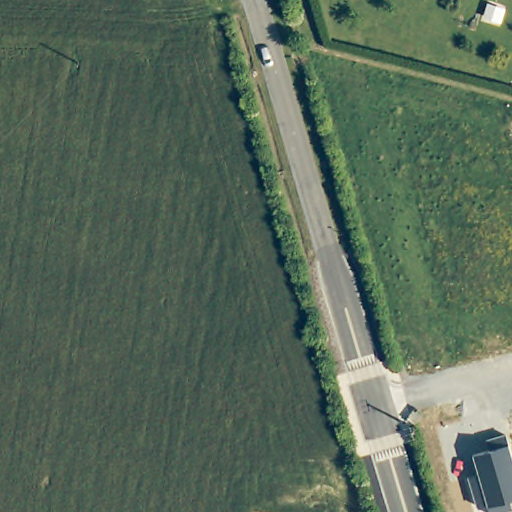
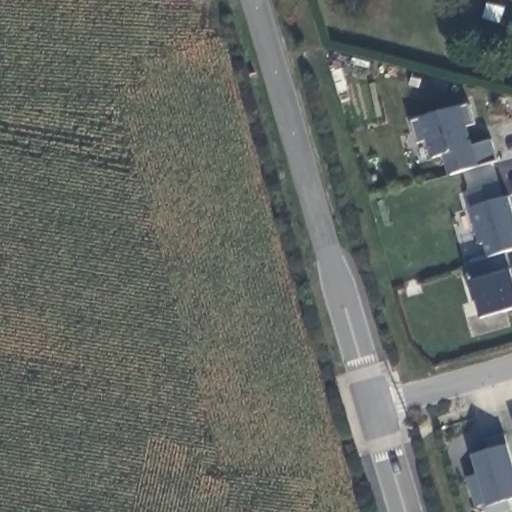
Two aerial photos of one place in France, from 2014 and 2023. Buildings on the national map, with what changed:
new [(444,155),(433,158),(426,140),(419,142),(412,121),(469,103),(475,124),(468,127),(473,145),(492,139),(499,159),(451,174),(444,155)]
new [(468,264),(490,258),(486,242),(482,243),(467,190),(497,182),(502,196),(508,194),(512,207),(512,251),(507,252),(512,269),(512,309),(484,318),(468,264)]
unchanged [(477,473),(472,454),(490,449),(486,438),(505,434),(508,444),(512,459),(512,498),(509,499),(512,510),(502,512),(489,512),(488,505),(486,502),(476,504),(468,476),(477,473)]

